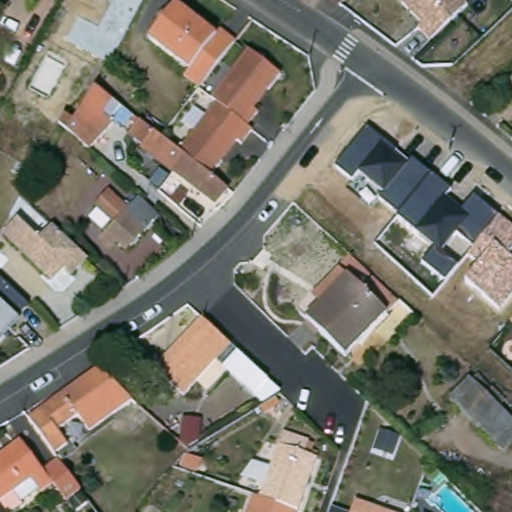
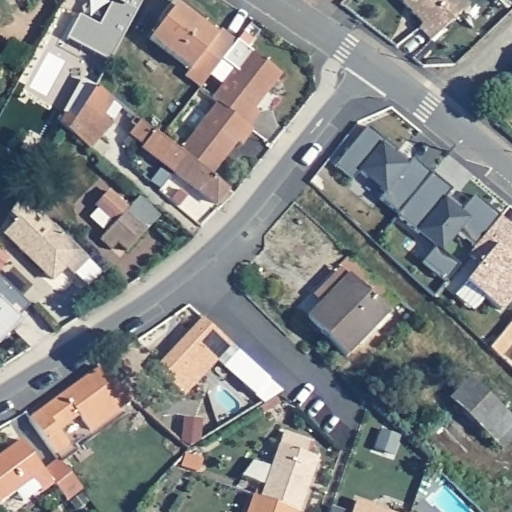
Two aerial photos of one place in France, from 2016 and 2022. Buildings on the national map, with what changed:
new [(98,26),(112,0),(143,0),(109,62),(66,38),(79,15),(98,26)]
unchanged [(431,40),(421,28),(425,23),(401,0),(468,0),(472,4),(431,40)]
unchanged [(218,63),(196,91),(182,79),(186,73),(146,41),(172,8),(212,40),(216,33),(232,45),(218,63)]
unchanged [(212,107),(206,102),(206,101),(243,54),(273,78),(262,94),(260,93),(246,110),(252,115),(242,129),(246,133),(235,148),(228,143),(215,161),(216,164),(205,178),(175,155),(212,107)]
unchanged [(116,110),(106,124),(110,127),(84,153),(55,128),(60,117),(70,123),(91,91),(108,104),(116,110)]
unchanged [(175,155),(205,178),(225,193),(212,209),(137,151),(139,149),(125,138),(132,128),(127,125),(131,121),(157,141),(175,155)]
unchanged [(367,127),(409,164),(412,161),(452,192),(448,197),(464,209),(475,197),(500,217),(512,228),(512,253),(509,257),(512,259),(512,296),(500,312),(466,286),(482,265),(467,256),(475,248),(458,234),(442,253),(458,266),(446,281),(423,261),(435,248),(415,232),(380,202),(385,195),(358,171),(351,179),(335,166),(367,127)]
unchanged [(159,221),(126,256),(117,247),(111,253),(101,243),(139,202),(159,221)]
unchanged [(28,215),(20,223),(10,214),(19,206),(28,215)]
unchanged [(68,277),(61,269),(47,282),(0,238),(0,237),(14,224),(34,244),(48,230),(83,263),(68,277)]
unchanged [(347,280),(337,270),(348,259),(397,307),(345,360),(305,323),(347,280)]
unchanged [(0,277),(30,303),(0,346),(0,277)]
unchanged [(227,373),(215,361),(182,395),(154,367),(201,317),(227,343),(227,344),(229,345),(227,348),(239,359),(227,373)]
unchanged [(511,318),(512,317),(512,319),(511,318)]
unchanged [(131,403),(55,459),(29,422),(98,373),(131,403)]
unchanged [(473,377),(512,415),(512,444),(506,450),(453,398),(473,377)]
unchanged [(254,506),(272,453),(277,440),(302,450),(297,462),(312,467),(296,512),(270,512),(254,506)]
unchanged [(62,504),(52,490),(39,499),(37,496),(19,508),(12,497),(0,506),(0,460),(20,446),(42,476),(58,465),(78,492),(62,504)]
unchanged [(270,512),(244,512),(247,504),(254,506),(270,512)]
unchanged [(356,505),(374,512),(353,512),(356,505)]

